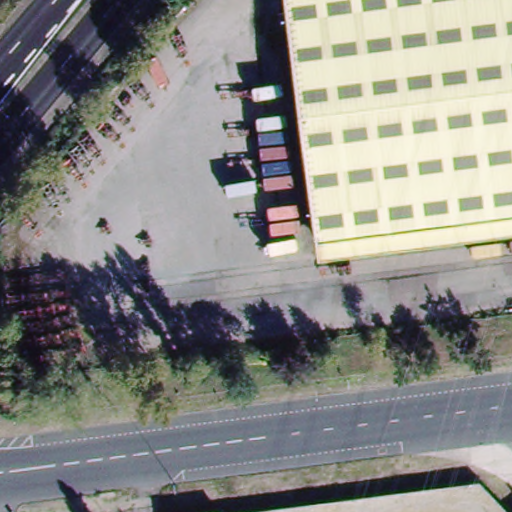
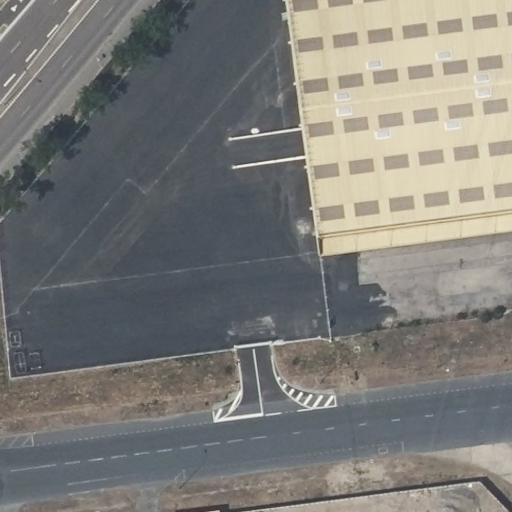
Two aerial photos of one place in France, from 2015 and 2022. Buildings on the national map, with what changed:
unchanged [(286,0),(512,0),(512,216),(318,241),(286,0)]
unchanged [(28,378),(10,379),(4,321),(26,320),(28,378)]

